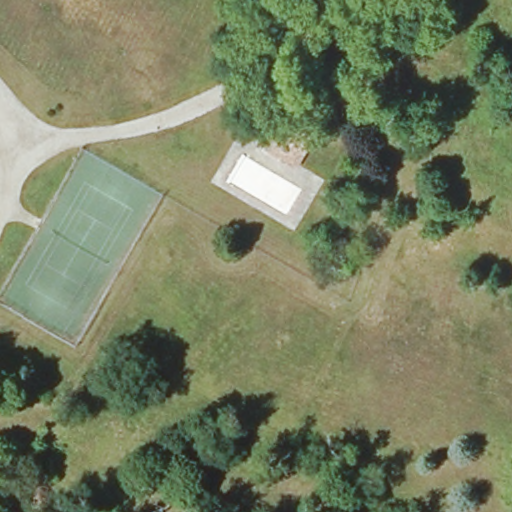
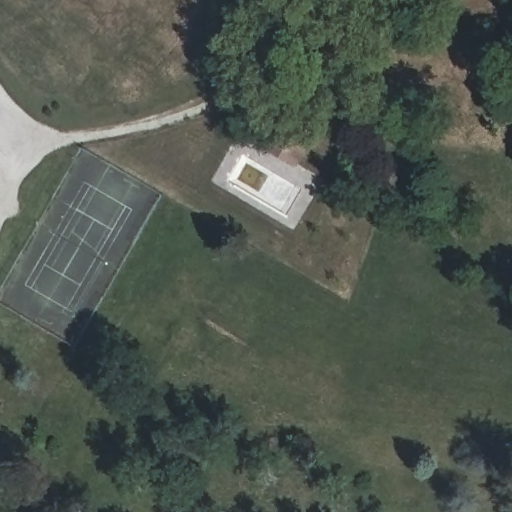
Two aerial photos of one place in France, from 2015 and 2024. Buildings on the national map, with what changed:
unchanged [(321,130),(300,170),(267,151),(289,112),(321,130)]

